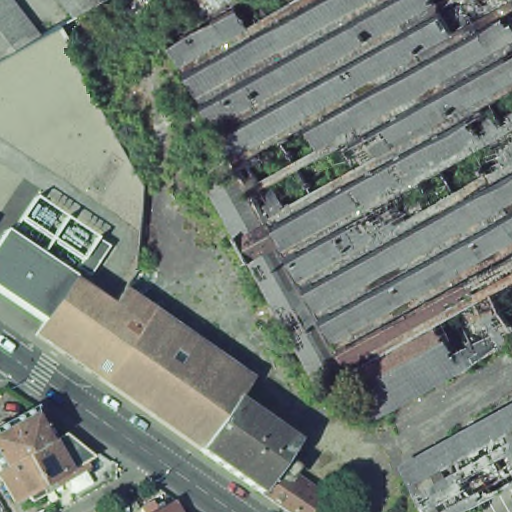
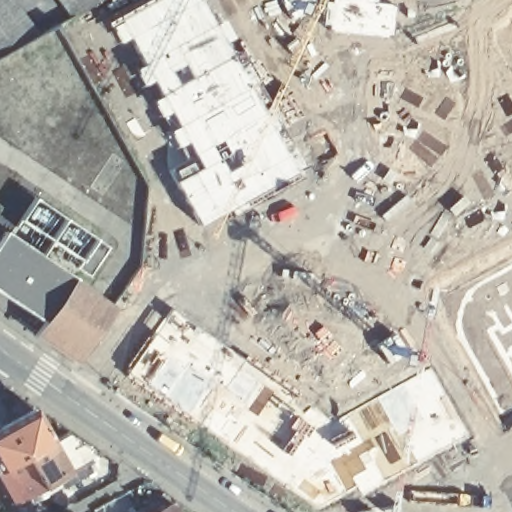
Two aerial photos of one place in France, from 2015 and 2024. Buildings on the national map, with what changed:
unchanged [(0,0),(19,0),(43,31),(0,63),(0,0)]
unchanged [(66,19),(54,0),(118,0),(72,28),(66,19)]
demolished [(207,168),(208,165),(229,153),(161,32),(163,31),(159,24),(160,19),(173,12),(185,0),(512,0),(512,334),(372,411),(346,365),(316,382),(271,301),(205,182),(212,178),(207,168)]
new [(72,257),(52,244),(51,246),(46,242),(18,220),(36,195),(65,215),(88,231),(72,257)]
unchanged [(44,322),(0,292),(0,236),(4,230),(75,277),(74,281),(72,280),(44,322)]
unchanged [(80,259),(95,237),(106,244),(107,245),(88,275),(85,273),(75,266),(80,259)]
unchanged [(73,361),(40,338),(35,335),(44,322),(72,280),(74,281),(78,284),(111,307),(73,361)]
demolished [(239,397),(236,402),(199,450),(73,361),(111,307),(239,397)]
demolished [(458,512),(428,512),(403,461),(512,401),(512,482),(458,512)]
demolished [(295,443),(283,460),(295,468),(287,480),(275,472),(260,493),(258,492),(199,450),(236,402),(295,443)]
unchanged [(51,440),(23,456),(0,469),(0,428),(33,409),(51,440)]
unchanged [(65,434),(93,457),(68,472),(52,481),(55,488),(45,494),(41,487),(23,456),(51,440),(51,441),(65,434)]
unchanged [(41,487),(45,494),(31,502),(27,495),(15,502),(0,476),(0,469),(23,456),(41,487)]
demolished [(324,512),(287,512),(261,493),(260,493),(275,472),(287,480),(326,508),(324,512)]
unchanged [(152,503),(157,512),(172,503),(177,512),(142,512),(141,509),(152,503)]

